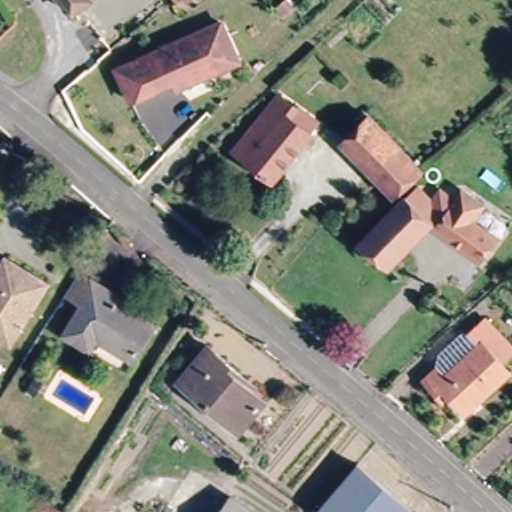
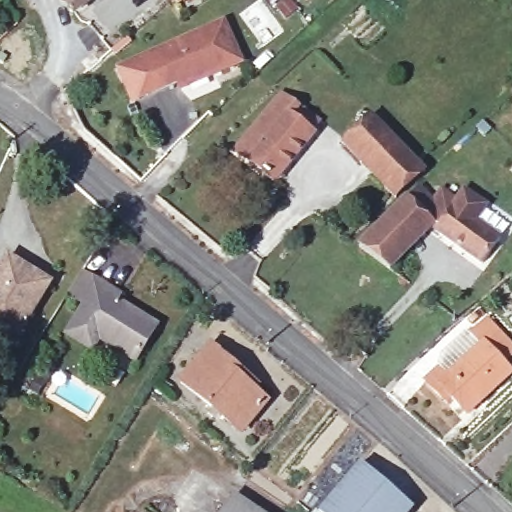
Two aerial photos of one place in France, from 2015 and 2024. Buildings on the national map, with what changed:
unchanged [(74,13),(73,11),(71,9),(64,0),(91,0),(74,13)]
unchanged [(179,4),(176,0),(184,0),(179,4)]
unchanged [(185,84),(182,77),(138,97),(124,65),(229,19),(246,58),(185,84)]
unchanged [(240,146),(286,89),(303,103),(325,121),(318,129),(279,178),(240,146)]
unchanged [(426,167),(423,170),(396,193),(343,139),(371,112),(426,167)]
unchanged [(486,200),(475,216),(500,234),(482,259),(434,225),(438,220),(426,208),(442,185),(456,195),(464,185),(486,200)]
unchanged [(435,218),(386,268),(360,242),(409,192),(435,218)]
unchanged [(13,337),(0,329),(0,267),(9,253),(50,278),(13,337)]
unchanged [(95,339),(88,351),(61,334),(79,304),(62,293),(77,272),(109,292),(115,296),(112,301),(152,326),(130,361),(95,339)]
unchanged [(452,394),(447,399),(425,376),(440,362),(467,337),(466,335),(470,331),(487,315),(512,341),(512,349),(502,358),(505,360),(512,368),(467,409),(461,402),(452,394)]
unchanged [(248,381),(266,396),(240,426),(182,376),(212,341),(217,346),(216,347),(251,377),(248,381)]
unchanged [(408,512),(320,512),(320,511),(360,465),(411,508),(408,512)]
unchanged [(223,512),(234,495),(259,512),(223,512)]

